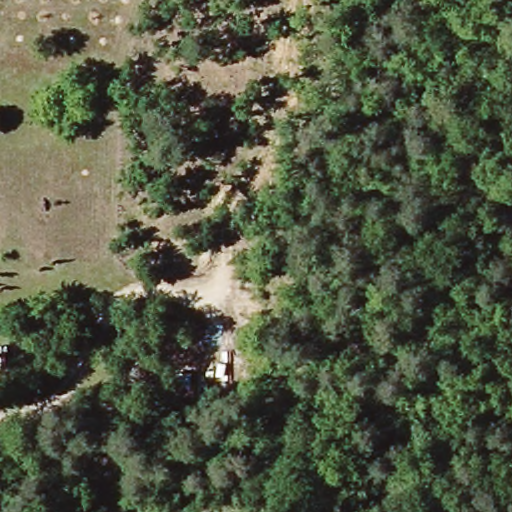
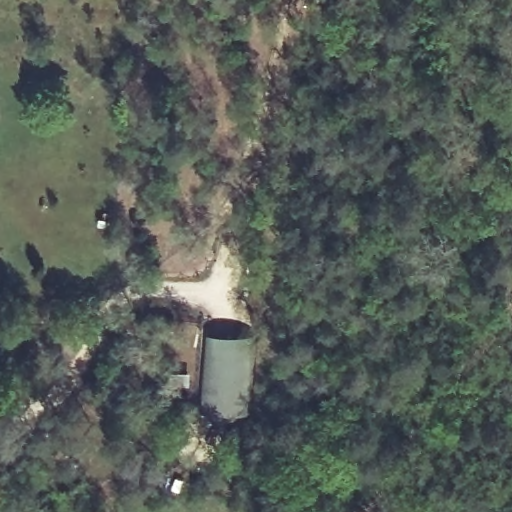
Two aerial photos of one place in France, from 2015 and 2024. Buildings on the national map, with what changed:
new [(215,406),(208,406),(213,336),(250,339),(244,416),(215,414),(215,406)]

